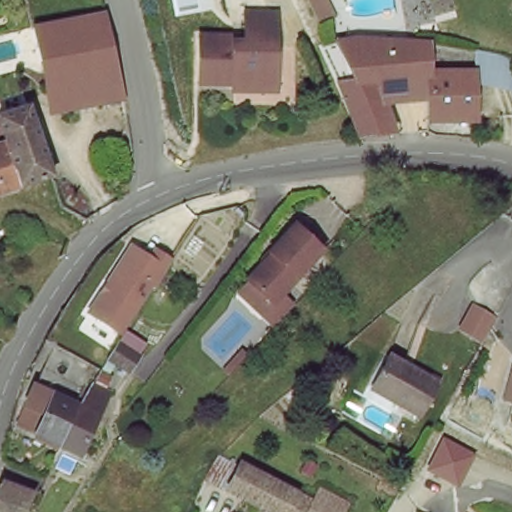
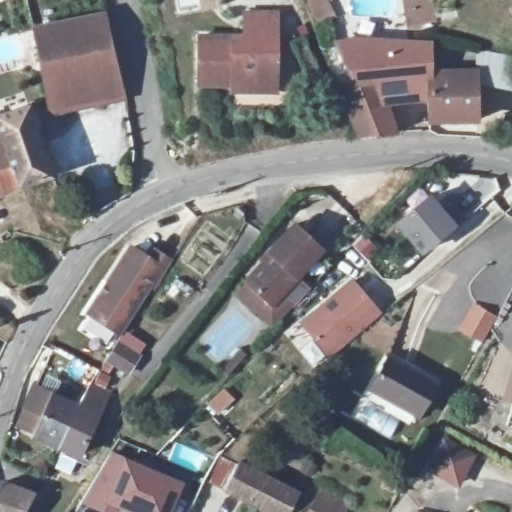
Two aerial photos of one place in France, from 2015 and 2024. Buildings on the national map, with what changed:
unchanged [(329,12),(315,19),(306,0),(323,0),(329,12)]
unchanged [(239,89),(240,83),(206,82),(207,35),(252,36),(253,11),(284,12),(282,84),(282,90),(239,89)]
unchanged [(32,27),(104,13),(125,92),(77,103),(66,58),(40,64),(32,27)]
unchanged [(358,40),(427,41),(430,42),(471,49),(476,50),(476,54),(476,76),(476,119),(429,120),(429,91),(381,95),(395,131),(361,137),(337,82),(355,81),(338,41),(358,40)]
unchanged [(512,56),(512,77),(511,83),(482,78),(476,76),(476,54),(476,50),(512,56)]
unchanged [(66,58),(77,103),(50,109),(40,64),(66,58)]
unchanged [(3,130),(0,130),(0,114),(29,105),(52,176),(21,185),(11,155),(6,140),(5,136),(3,130)]
unchanged [(21,185),(0,192),(0,142),(6,140),(11,155),(21,185)]
new [(427,197),(442,215),(451,206),(461,218),(422,250),(398,221),(427,197)]
unchanged [(233,290),(294,222),(326,248),(286,295),(295,302),(274,327),(233,290)]
unchanged [(87,315),(132,245),(149,254),(155,246),(174,257),(123,333),(87,315)]
new [(351,279),(379,312),(329,355),(300,322),(351,279)]
new [(475,309),(496,321),(482,345),(461,333),(475,309)]
unchanged [(138,352),(129,369),(128,368),(105,355),(115,338),(138,352)]
unchanged [(95,373),(85,368),(89,361),(96,350),(105,355),(99,366),(95,373)]
unchanged [(390,355),(438,381),(420,413),(371,386),(390,355)]
unchanged [(17,430),(24,411),(35,383),(80,402),(85,392),(93,377),(96,372),(115,383),(105,402),(86,441),(78,460),(58,450),(17,430)]
unchanged [(427,471),(446,435),(480,452),(460,490),(427,471)]
new [(126,460),(181,483),(169,512),(137,512),(115,503),(112,512),(109,512),(83,500),(111,455),(126,460)]
unchanged [(343,508),(341,512),(276,512),(253,502),(231,491),(231,489),(238,474),(242,466),(265,477),(266,475),(323,500),(343,508)]
unchanged [(26,512),(0,512),(0,483),(34,492),(26,512)]

